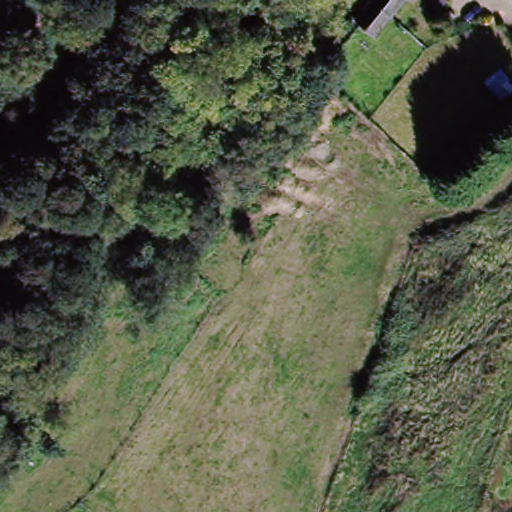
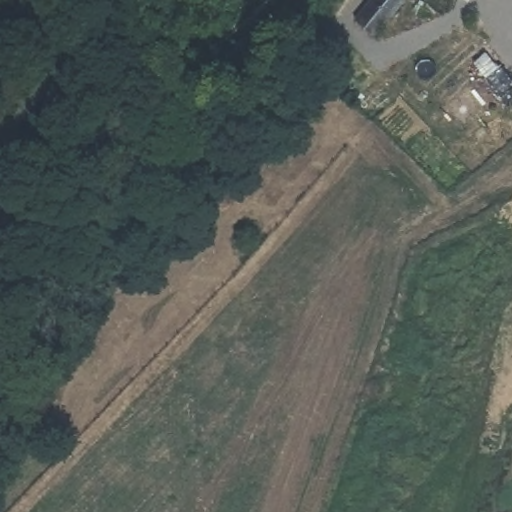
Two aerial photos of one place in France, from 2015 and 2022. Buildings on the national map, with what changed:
unchanged [(354,19),(371,0),(404,0),(372,35),(354,19)]
unchanged [(501,66),(512,81),(512,89),(494,101),(477,78),(501,66)]

